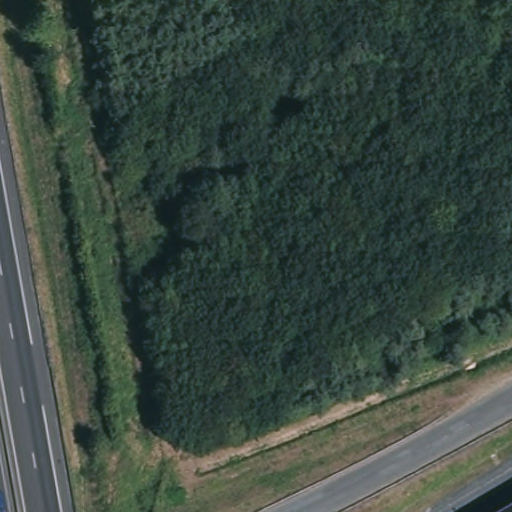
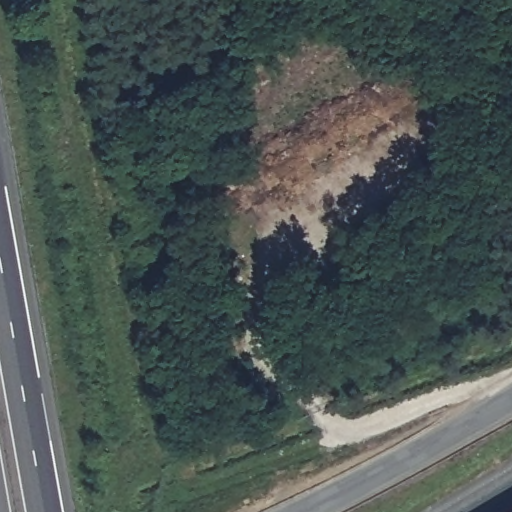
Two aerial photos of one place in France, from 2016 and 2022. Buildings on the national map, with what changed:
unchanged [(510,512),(512,511),(512,512),(510,512)]

